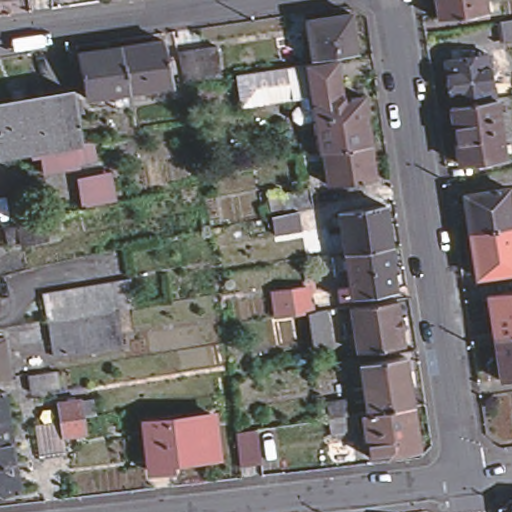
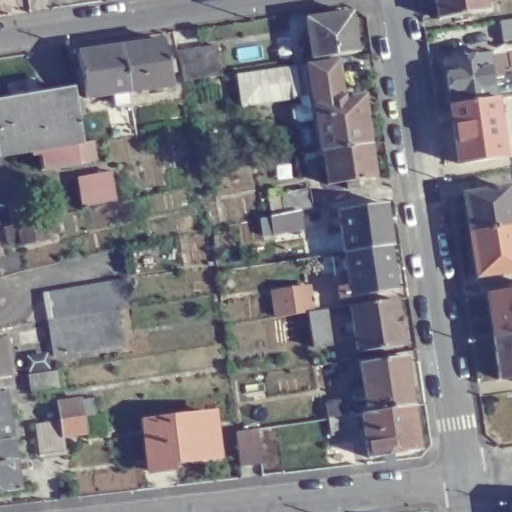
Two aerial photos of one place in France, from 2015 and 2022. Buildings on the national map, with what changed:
unchanged [(23,0),(23,2),(0,6),(0,0),(23,0)]
unchanged [(440,22),(436,0),(484,0),(486,14),(440,22)]
unchanged [(307,27),(351,20),(357,59),(313,67),(307,27)]
unchanged [(512,42),(503,43),(500,23),(512,21),(512,42)]
unchanged [(121,49),(165,43),(173,87),(130,93),(121,49)]
unchanged [(196,51),(218,48),(222,78),(201,81),(185,84),(178,54),(196,51)]
unchanged [(87,100),(78,56),(121,49),(130,93),(87,100)]
unchanged [(496,101),(504,158),(490,160),(492,167),(480,169),(479,162),(460,165),(451,107),(451,106),(445,63),(467,60),(466,53),(473,52),(475,58),(489,56),(495,100),(496,101)]
unchanged [(342,89),(338,89),(341,104),(327,106),(328,109),(313,111),(312,103),(294,106),(290,73),(339,65),(342,89)]
unchanged [(238,81),(257,78),(290,73),(294,106),(261,111),(242,113),(238,81)]
unchanged [(46,172),(43,151),(34,99),(58,94),(68,92),(79,144),(78,144),(81,165),(71,167),(46,172)]
unchanged [(0,158),(0,105),(34,99),(43,151),(34,152),(0,158)]
unchanged [(313,111),(328,109),(327,106),(341,104),(344,103),(345,106),(364,103),(371,151),(323,158),(320,159),(313,111)]
unchanged [(371,151),(376,185),(357,187),(358,194),(348,196),(347,189),(328,192),(323,158),(371,151)]
unchanged [(110,172),(114,202),(81,207),(76,179),(110,172)]
unchanged [(465,196),(508,189),(512,210),(512,228),(471,234),(465,196)]
unchanged [(286,215),(282,196),(310,191),(315,209),(286,215)]
unchanged [(335,214),(380,207),(386,247),(385,248),(341,254),(335,214)]
unchanged [(5,229),(13,227),(18,226),(50,219),(57,217),(60,234),(47,237),(48,241),(22,246),(21,242),(8,245),(5,229)]
unchanged [(471,234),(512,228),(512,273),(477,277),(471,234)]
unchanged [(385,248),(391,292),(348,298),(341,254),(385,248)]
unchanged [(115,348),(45,359),(40,322),(37,305),(57,302),(55,291),(106,284),(110,311),(115,348)]
unchanged [(315,349),(312,335),(308,314),(272,318),(270,292),(311,287),(315,313),(325,312),(328,331),(330,346),(315,349)]
unchanged [(512,292),(512,378),(496,380),(490,340),(483,296),(512,292)]
unchanged [(400,347),(354,354),(350,333),(343,335),(341,324),(348,323),(346,308),(392,301),(400,347)]
unchanged [(5,339),(11,378),(0,380),(0,340),(5,339)]
unchanged [(368,413),(366,401),(357,402),(355,391),(365,389),(361,365),(405,358),(409,380),(415,379),(415,386),(410,387),(413,406),(368,413)]
unchanged [(60,389),(32,393),(29,376),(57,372),(60,389)]
unchanged [(0,444),(0,393),(4,392),(12,442),(0,444)]
unchanged [(59,453),(40,456),(36,436),(35,424),(58,420),(56,404),(80,400),(83,416),(86,433),(61,437),(56,438),(59,453)]
unchanged [(327,405),(347,402),(349,416),(351,433),(331,436),(329,419),(327,405)]
unchanged [(420,451),(371,459),(364,414),(368,413),(413,406),(420,451)]
unchanged [(170,462),(171,470),(150,473),(145,426),(213,417),(218,456),(170,462)]
unchanged [(236,434),(250,432),(253,466),(240,467),(236,434)]
unchanged [(20,492),(0,495),(0,444),(12,442),(20,492)]

